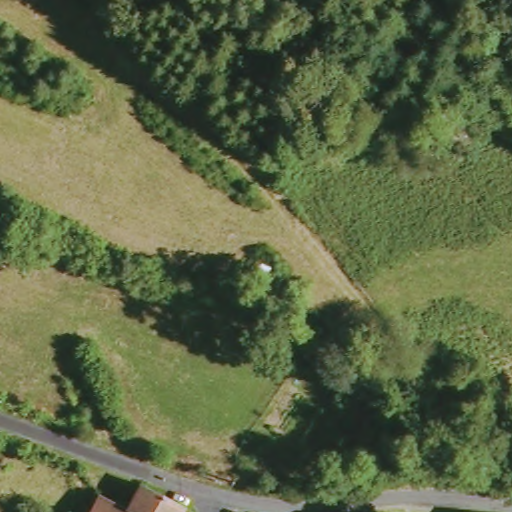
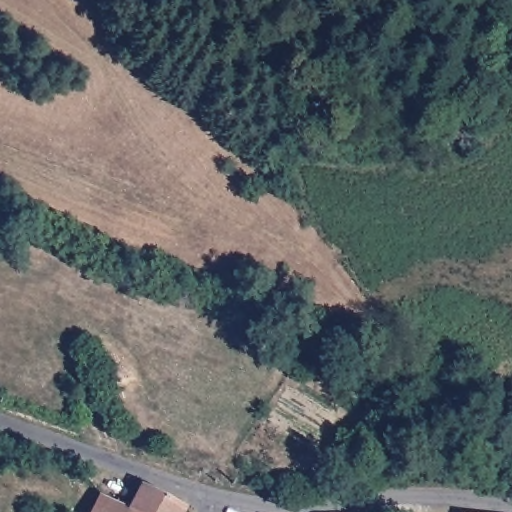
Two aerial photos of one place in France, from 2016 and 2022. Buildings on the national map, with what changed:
unchanged [(124,512),(134,488),(179,512),(124,512)]
unchanged [(122,512),(89,512),(95,498),(122,512)]

